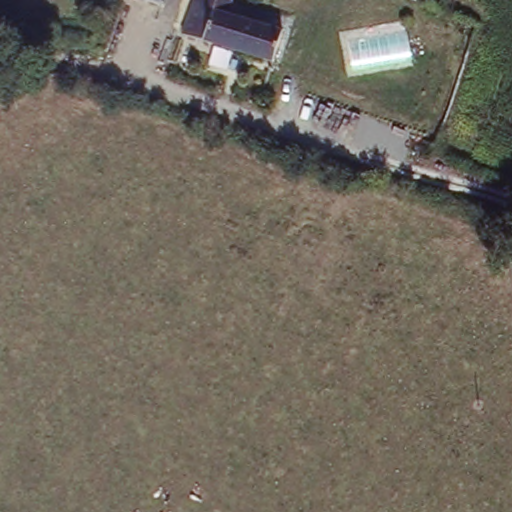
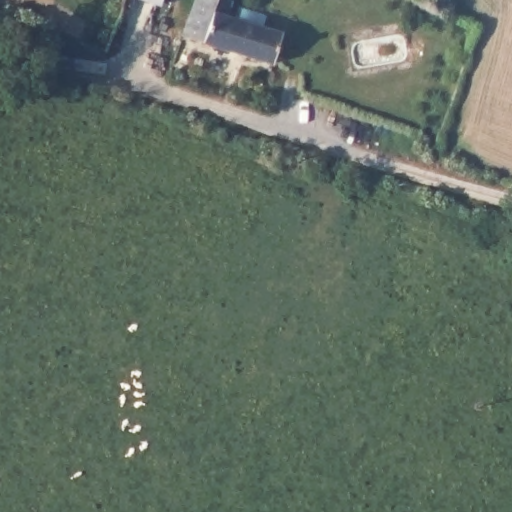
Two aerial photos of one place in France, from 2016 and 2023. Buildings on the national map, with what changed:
unchanged [(165,3),(152,0),(167,0),(165,3)]
unchanged [(181,31),(194,0),(246,0),(250,1),(246,18),(282,30),(272,60),(181,31)]

